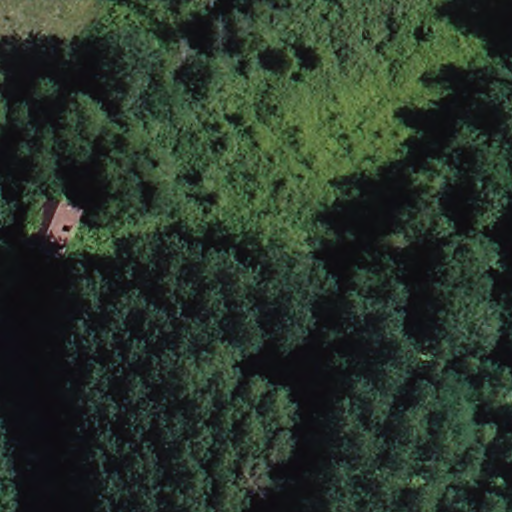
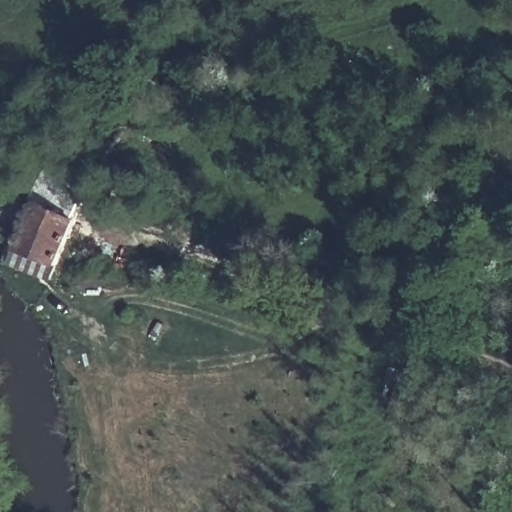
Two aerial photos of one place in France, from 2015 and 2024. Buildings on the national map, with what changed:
unchanged [(82,216),(61,265),(21,248),(43,197),(82,216)]

